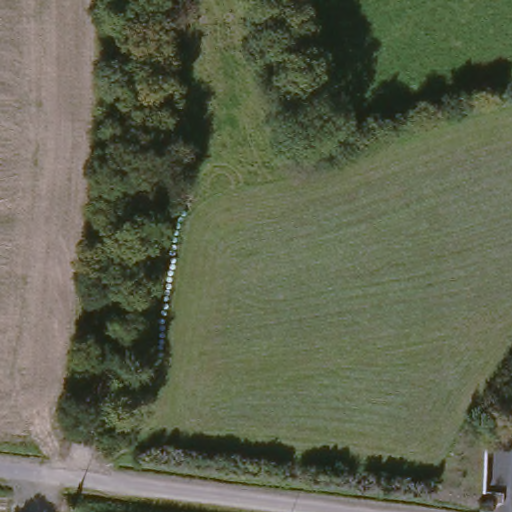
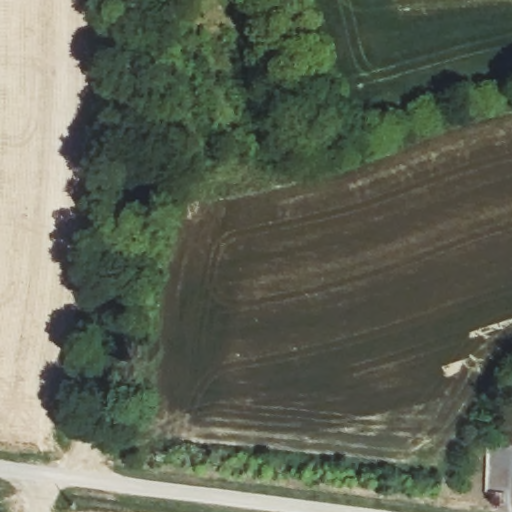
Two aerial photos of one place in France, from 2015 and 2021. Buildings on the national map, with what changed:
unchanged [(496,483),(478,479),(486,434),(506,438),(496,483)]

